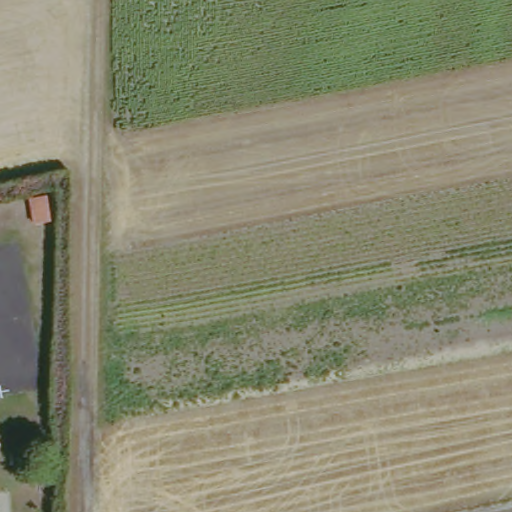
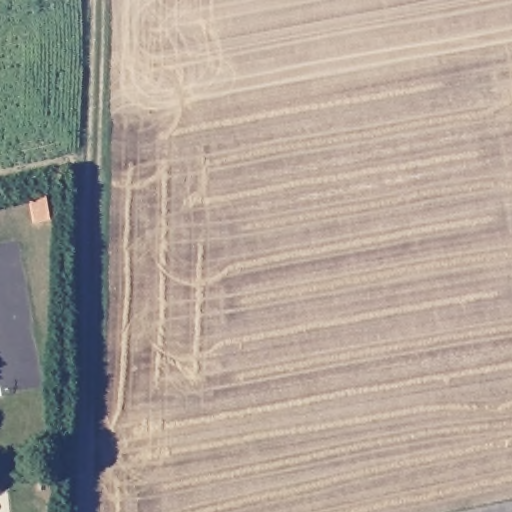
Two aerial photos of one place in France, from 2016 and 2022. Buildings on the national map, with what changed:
unchanged [(36,224),(31,198),(47,196),(52,221),(36,224)]

